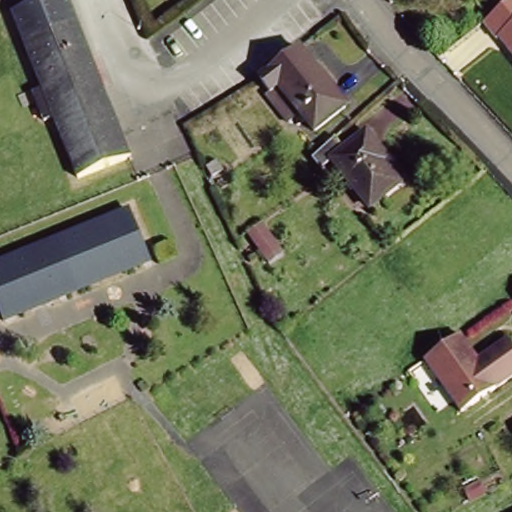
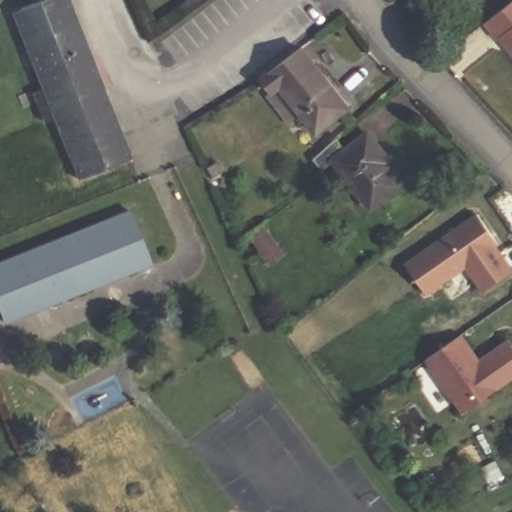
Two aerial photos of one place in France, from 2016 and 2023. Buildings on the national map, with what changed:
unchanged [(132,153),(83,173),(30,37),(18,8),(24,6),(40,0),(71,0),(132,153)]
unchanged [(512,1),(512,52),(500,37),(499,39),(485,22),(512,1)]
unchanged [(274,87),(263,73),(302,43),(350,102),(317,127),(304,109),(291,120),(270,90),(274,87)]
unchanged [(344,140),(352,151),(375,134),(395,159),(390,163),(407,185),(378,208),(370,199),(366,202),(355,188),(360,185),(340,160),(329,169),(320,158),(344,140)]
unchanged [(211,177),(205,168),(214,162),(220,170),(211,177)]
unchanged [(0,307),(0,265),(132,212),(152,261),(48,303),(34,309),(5,320),(0,307)]
new [(481,293),(465,269),(426,296),(404,263),(478,213),(512,265),(512,272),(481,293)]
unchanged [(258,224),(280,255),(267,264),(245,233),(258,224)]
unchanged [(479,361),(506,340),(512,347),(512,381),(465,412),(428,362),(464,337),(479,361)]

